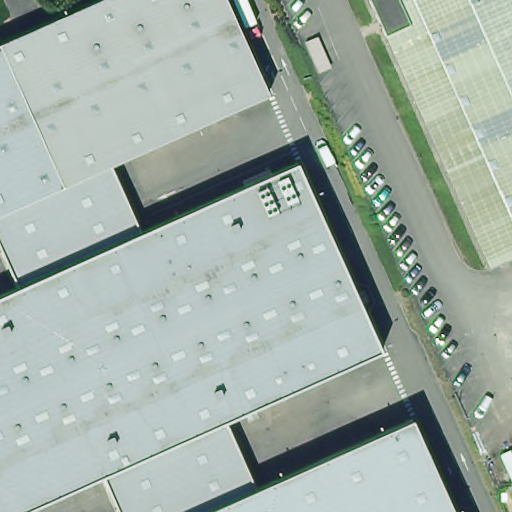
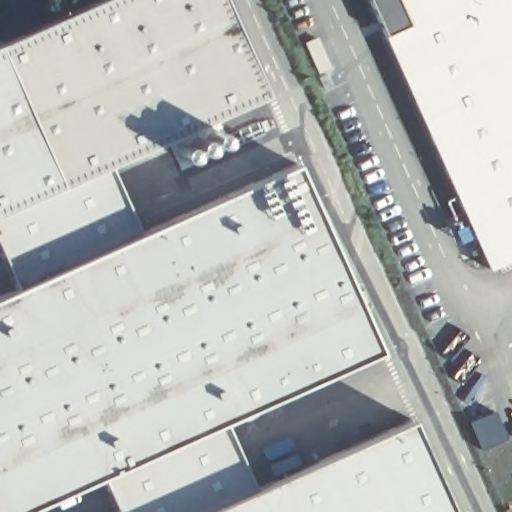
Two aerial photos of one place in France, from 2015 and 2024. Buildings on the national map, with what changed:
unchanged [(269,97),(115,164),(112,165),(77,180),(0,215),(0,45),(98,0),(226,0),(269,97)]
unchanged [(375,1),(375,0),(379,0),(375,1)]
unchanged [(379,0),(512,0),(512,254),(487,264),(375,1),(379,0)]
unchanged [(143,234),(298,165),(382,351),(228,420),(257,482),(191,512),(126,512),(108,473),(24,512),(0,512),(0,300),(22,290),(0,245),(0,215),(77,180),(112,165),(143,234)]
unchanged [(407,414),(452,512),(191,512),(257,482),(407,414)]
unchanged [(506,464),(512,462),(512,481),(506,464)]

